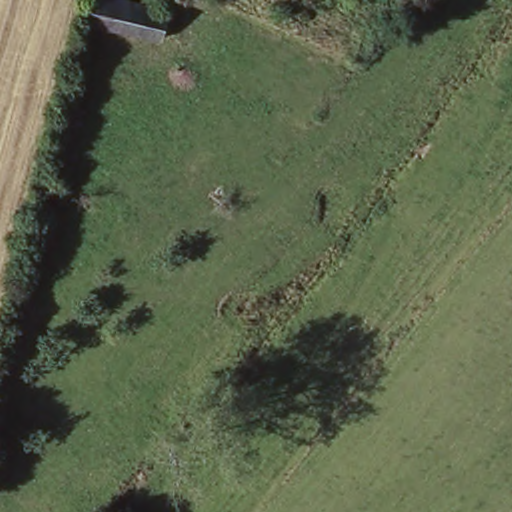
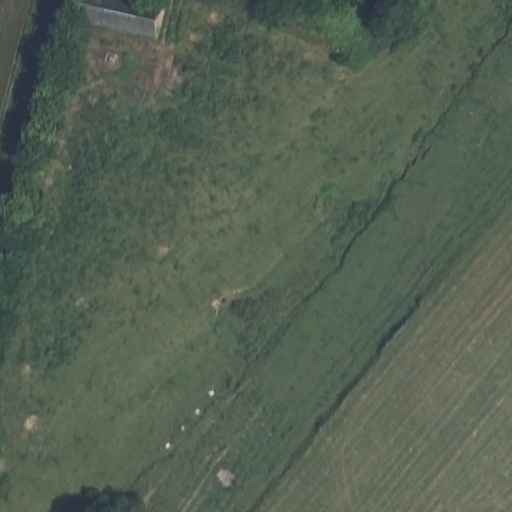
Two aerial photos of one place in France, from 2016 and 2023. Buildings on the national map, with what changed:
unchanged [(155,39),(75,21),(80,0),(118,0),(162,10),(179,13),(170,41),(155,39)]

